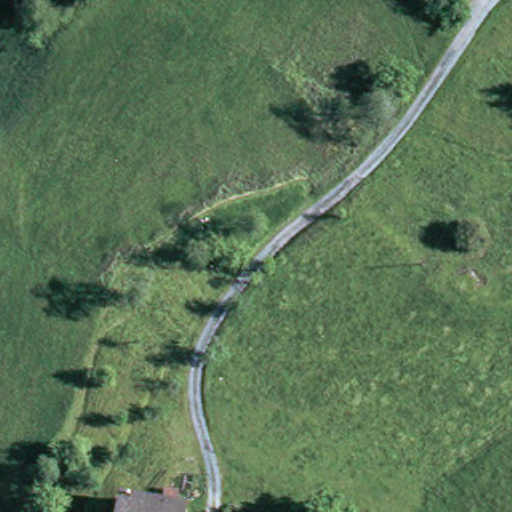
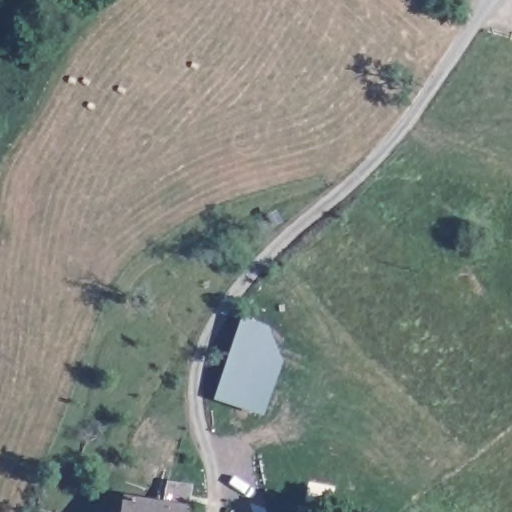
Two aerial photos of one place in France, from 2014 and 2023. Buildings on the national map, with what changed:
new [(242,329),(265,335),(277,367),(261,415),(218,400),(234,351),(242,329)]
unchanged [(187,505),(186,512),(120,512),(122,495),(187,505)]

